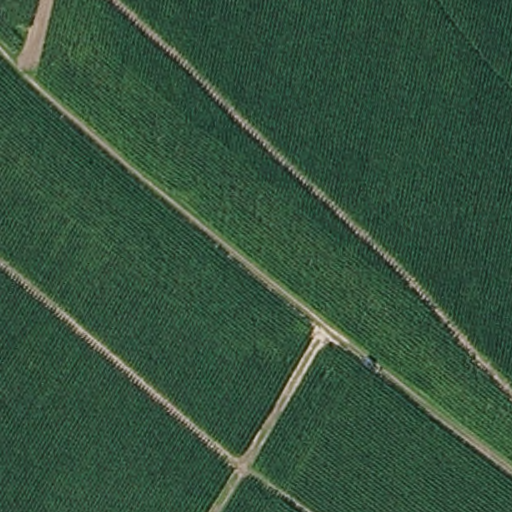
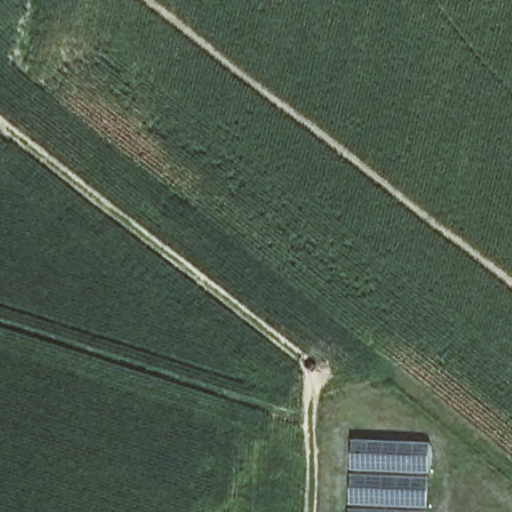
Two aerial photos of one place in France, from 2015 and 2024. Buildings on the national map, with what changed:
new [(430,443),(427,512),(348,512),(351,439),(430,443)]

